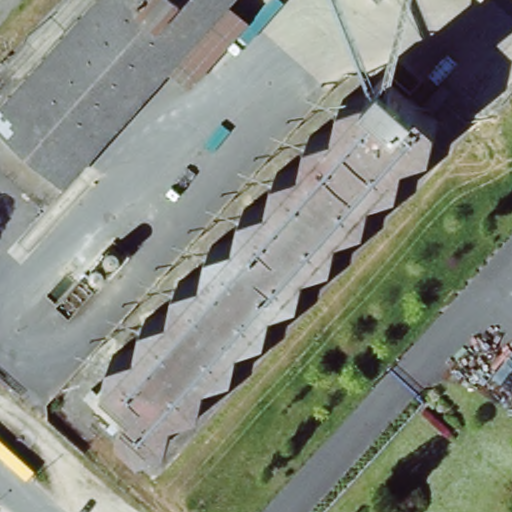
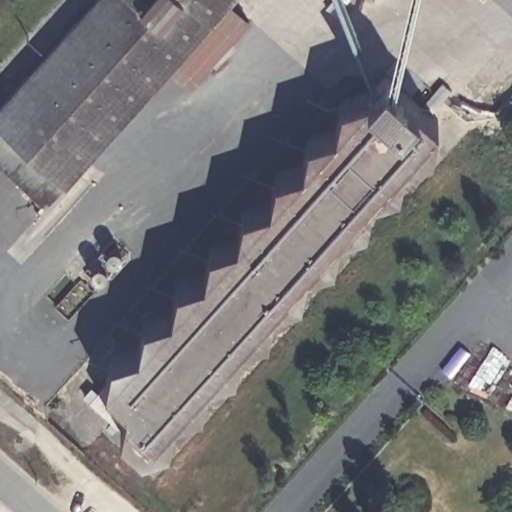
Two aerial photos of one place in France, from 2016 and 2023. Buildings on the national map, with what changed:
unchanged [(0,121),(105,0),(231,0),(227,5),(169,73),(47,214),(0,173),(0,121)]
unchanged [(192,94),(169,73),(227,5),(251,25),(192,94)]
unchanged [(397,199),(370,207),(363,238),(336,243),(332,272),(304,280),(299,311),(270,316),(266,348),(236,353),(232,387),(203,394),(198,426),(171,432),(166,463),(140,466),(120,449),(125,424),(100,400),(106,374),(136,365),(142,336),(168,327),(175,297),(202,287),(210,256),(237,247),(242,221),(269,211),(275,182),(302,174),(307,148),(332,140),(339,109),(367,99),(383,81),(437,130),(433,157),(403,167),(397,199)]

